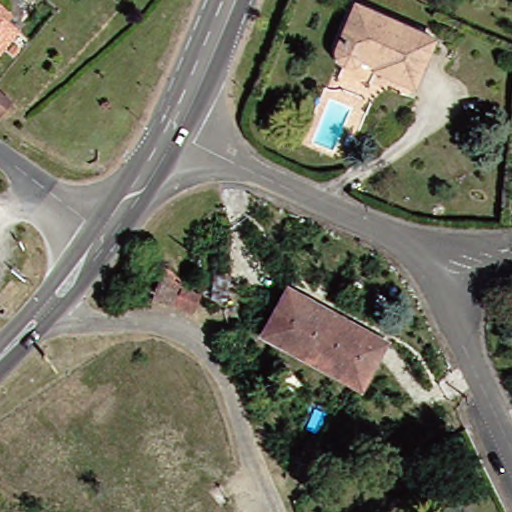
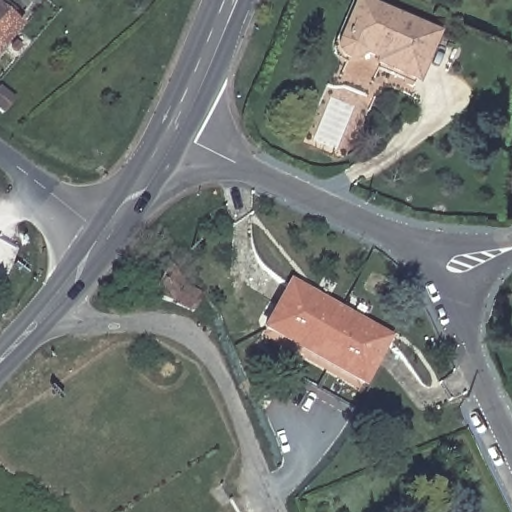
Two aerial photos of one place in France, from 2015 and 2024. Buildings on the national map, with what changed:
unchanged [(365,61),(352,55),(350,57),(344,59),(337,60),(335,59),(331,55),(329,51),(328,47),(347,1),(425,36),(406,82),(364,64),(365,61)]
unchanged [(0,46),(0,6),(9,15),(4,21),(14,30),(0,46)]
unchanged [(7,105),(0,114),(0,99),(7,105)]
unchanged [(385,341),(358,388),(257,331),(284,285),(385,341)]

